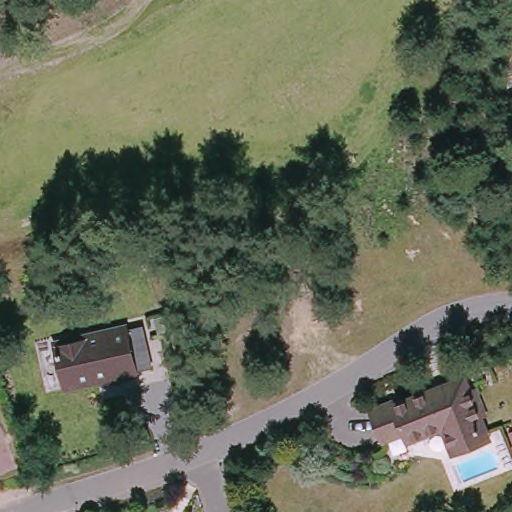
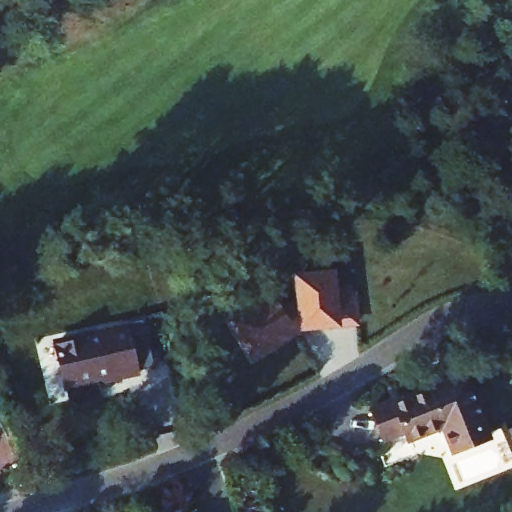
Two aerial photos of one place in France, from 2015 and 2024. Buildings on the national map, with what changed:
new [(261,346),(246,359),(230,339),(269,308),(283,325),(298,313),(293,289),(327,281),(330,298),(350,294),(356,327),(317,336),(316,330),(300,330),(292,336),(295,341),(272,360),(261,346)]
unchanged [(130,333),(145,330),(147,342),(133,346),(140,377),(111,384),(111,381),(66,391),(55,342),(128,325),(130,333)]
unchanged [(470,394),(480,390),(486,413),(478,416),(485,443),(453,452),(444,425),(406,437),(403,429),(381,434),(372,400),(395,392),(396,399),(434,389),(435,394),(468,385),(470,394)]

